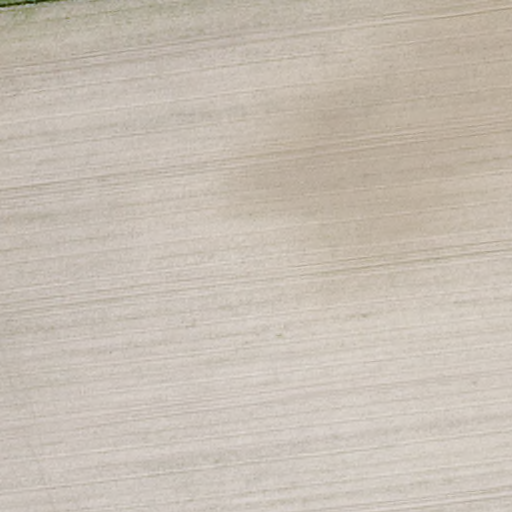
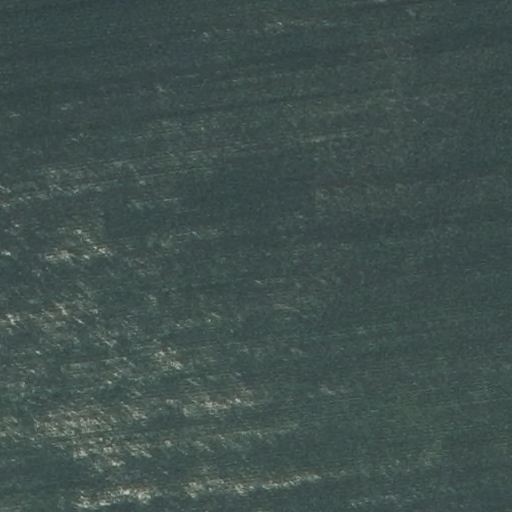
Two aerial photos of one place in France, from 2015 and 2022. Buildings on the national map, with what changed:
[]

